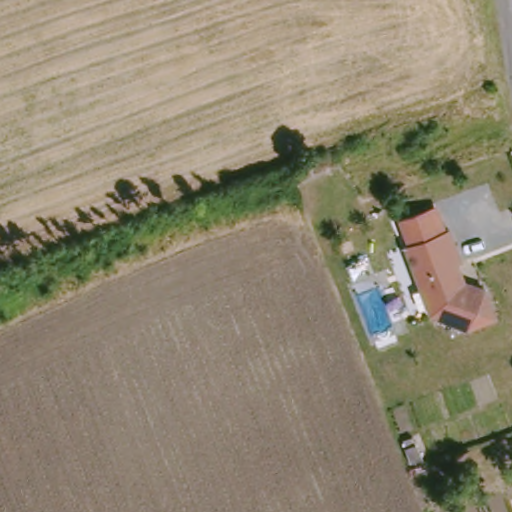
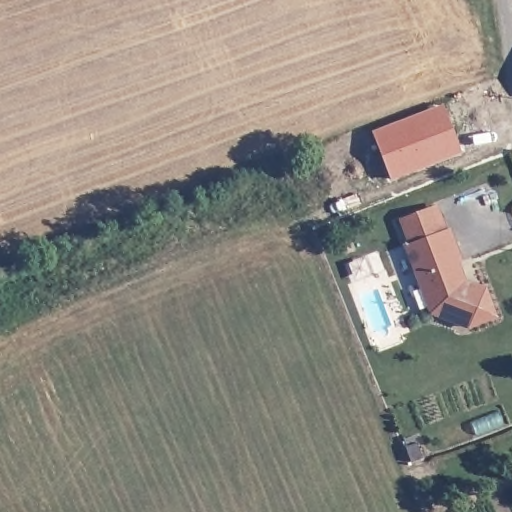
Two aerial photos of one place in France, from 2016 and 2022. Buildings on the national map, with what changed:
new [(466,156),(389,183),(371,128),(447,101),(466,156)]
unchanged [(464,283),(485,289),(496,320),(467,331),(429,316),(404,248),(408,247),(398,220),(436,206),(446,232),(450,230),(463,265),(459,266),(464,283)]
unchanged [(419,444),(426,459),(416,463),(409,449),(419,444)]

